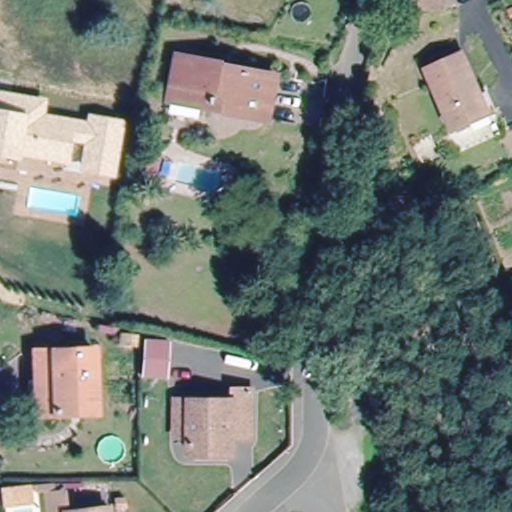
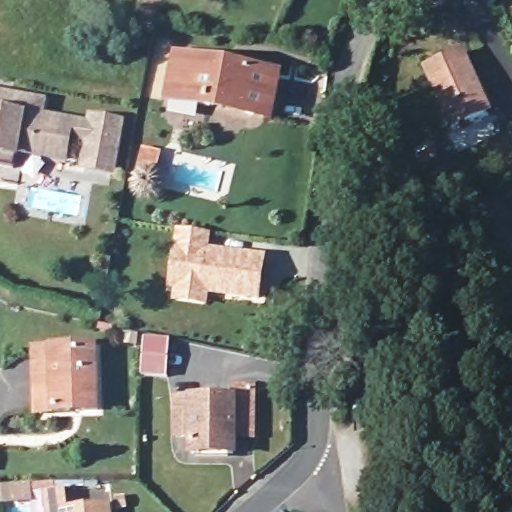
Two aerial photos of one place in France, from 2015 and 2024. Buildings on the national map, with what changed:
unchanged [(455,14),(427,12),(429,0),(457,0),(455,14)]
unchanged [(212,104),(172,97),(179,55),(278,74),(270,115),(251,111),(252,106),(227,102),(226,107),(212,104)]
unchanged [(487,116),(456,131),(428,71),(464,55),(482,94),(491,114),(487,116)]
unchanged [(47,99),(44,114),(86,121),(88,113),(125,121),(116,177),(79,171),(84,143),(72,142),(68,163),(20,156),(19,161),(15,159),(14,169),(0,166),(0,90),(47,99)]
new [(173,303),(174,289),(168,289),(176,229),(212,233),(210,247),(266,255),(260,302),(208,295),(207,308),(173,303)]
unchanged [(145,339),(174,343),(170,379),(144,378),(145,339)]
unchanged [(36,353),(52,353),(97,352),(97,412),(52,412),(36,412),(36,353)]
unchanged [(237,392),(258,392),(257,440),(237,439),(237,455),(196,455),(196,439),(181,439),(181,403),(196,403),(237,403),(237,392)]
unchanged [(66,493),(68,512),(49,512),(47,495),(66,493)]
unchanged [(108,512),(68,512),(108,508),(108,512)]

